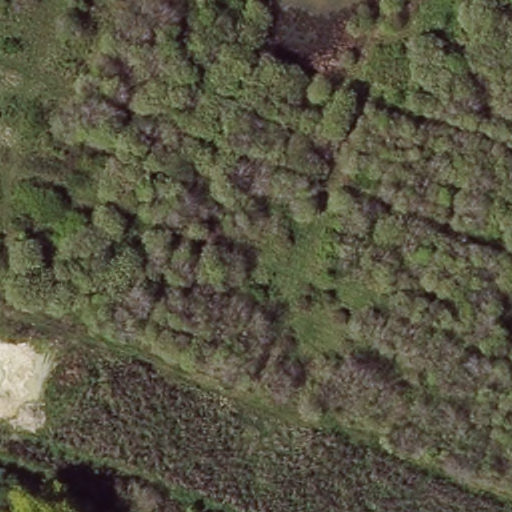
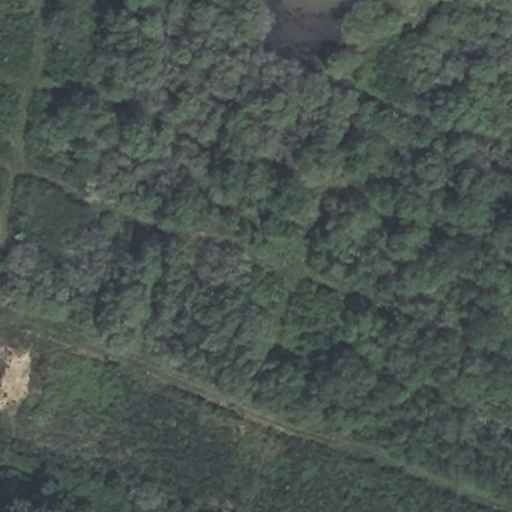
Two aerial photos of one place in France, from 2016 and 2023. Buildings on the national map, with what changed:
[]

